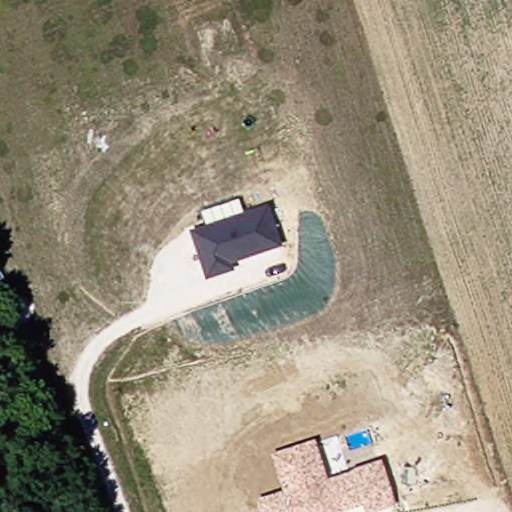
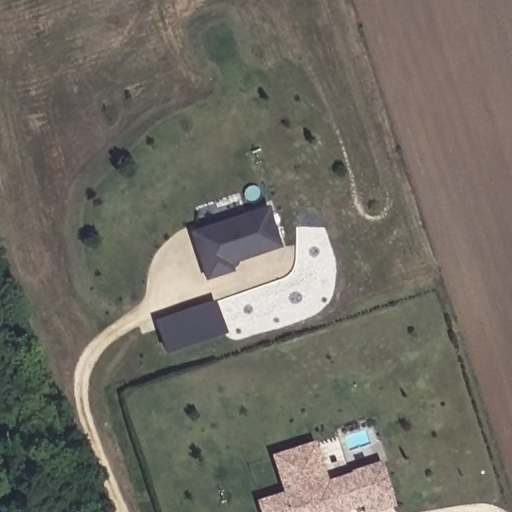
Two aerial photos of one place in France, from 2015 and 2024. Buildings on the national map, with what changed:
unchanged [(188,232),(269,206),(283,247),(231,265),(233,271),(205,281),(188,232)]
new [(168,353),(156,320),(216,300),(228,332),(168,353)]
unchanged [(281,492),(270,455),(314,441),(328,479),(381,461),(395,506),(378,512),(364,512),(362,506),(343,512),(260,512),(256,500),(281,492)]

